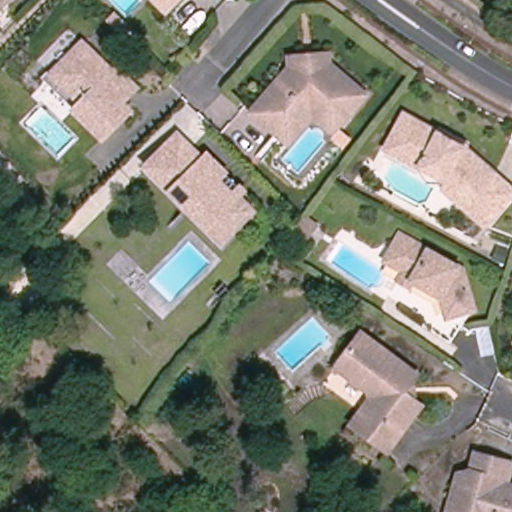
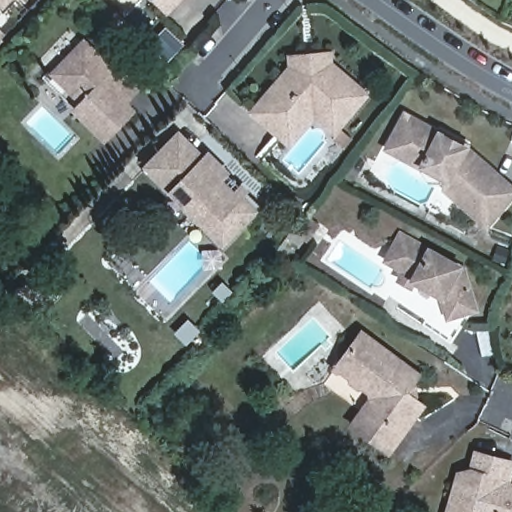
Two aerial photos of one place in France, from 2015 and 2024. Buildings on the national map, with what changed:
unchanged [(16,0),(7,9),(0,2),(0,0),(16,0)]
unchanged [(172,16),(160,4),(164,0),(188,0),(172,16)]
unchanged [(134,31),(126,40),(108,21),(116,14),(134,31)]
unchanged [(4,36),(0,40),(0,33),(4,36)]
unchanged [(104,137),(75,110),(82,101),(53,72),(84,42),(114,71),(117,67),(136,86),(123,101),(131,109),(104,137)]
unchanged [(370,99),(345,130),(318,107),(293,135),(263,109),(295,71),(295,62),(334,59),(335,68),(370,99)]
unchanged [(293,135),(318,107),(345,130),(338,137),(319,121),(295,149),(256,116),(263,109),(293,135)]
unchanged [(448,175),(418,159),(418,160),(386,143),(391,134),(405,110),(464,141),(512,183),(512,189),(486,219),(445,183),(448,175)]
unchanged [(254,210),(222,242),(145,166),(179,133),(204,158),(208,154),(222,167),(245,190),(239,195),(254,210)]
unchanged [(306,240),(295,230),(306,215),(318,225),(306,240)]
unchanged [(475,300),(456,337),(426,322),(442,290),(402,270),(404,267),(385,257),(398,232),(460,263),(475,300)]
unchanged [(383,455),(347,428),(368,398),(332,371),(357,337),(412,377),(407,385),(411,405),(417,410),(383,455)]
unchanged [(452,496),(462,494),(455,486),(459,475),(471,472),(475,461),(486,457),(495,467),(496,461),(511,465),(506,485),(512,487),(512,512),(452,512),(449,508),(452,496)]

